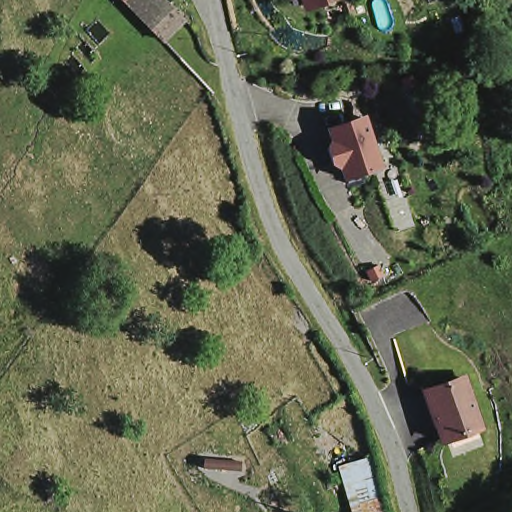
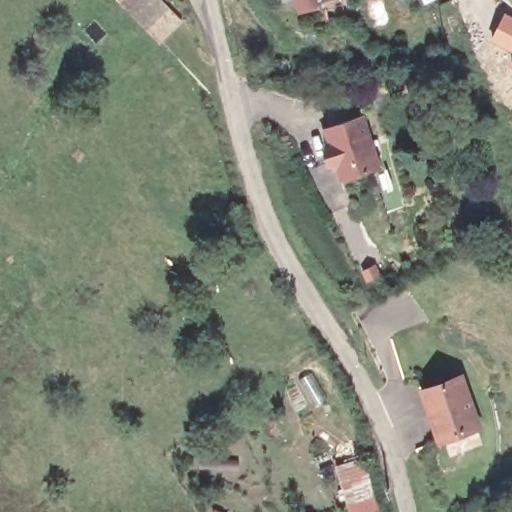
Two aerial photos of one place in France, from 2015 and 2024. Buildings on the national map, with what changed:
unchanged [(119,2),(121,0),(157,0),(160,4),(181,26),(171,35),(160,45),(119,2)]
unchanged [(336,0),(297,11),(294,0),(336,0)]
new [(512,14),(512,51),(488,39),(504,10),(512,14)]
new [(512,56),(512,64),(508,63),(512,56)]
unchanged [(380,166),(338,181),(335,168),(330,168),(323,145),(327,144),(325,129),(364,117),(380,166)]
unchanged [(454,379),(480,431),(438,448),(417,397),(454,379)]
unchanged [(334,469),(364,463),(378,512),(346,512),(334,469)]

